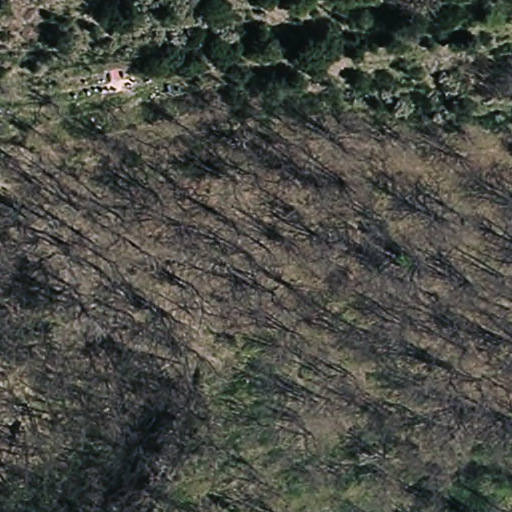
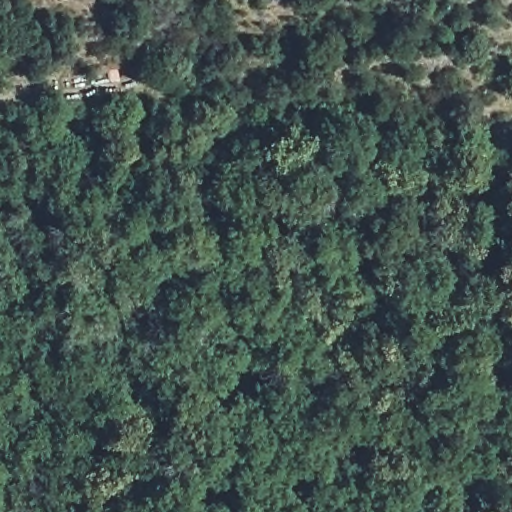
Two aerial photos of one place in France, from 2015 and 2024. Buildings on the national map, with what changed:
unchanged [(126,72),(127,85),(112,86),(110,74),(126,72)]

